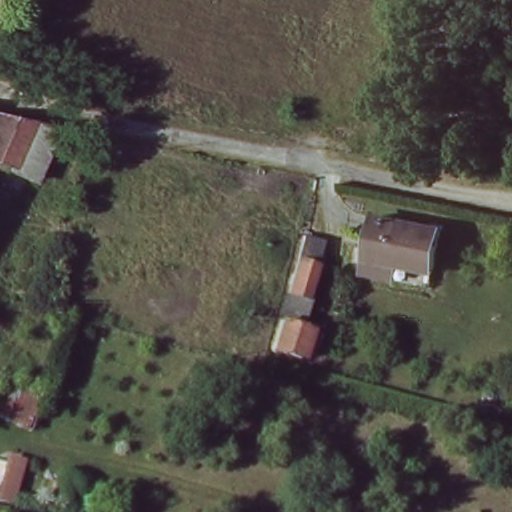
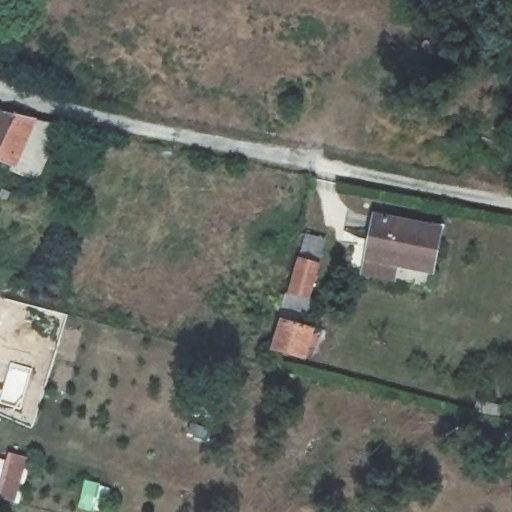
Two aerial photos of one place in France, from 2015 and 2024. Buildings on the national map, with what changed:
unchanged [(35,180),(0,161),(0,111),(60,123),(35,180)]
unchanged [(370,247),(377,214),(442,227),(433,267),(400,260),(368,254),(370,247)]
unchanged [(320,267),(308,303),(300,300),(292,325),(323,335),(319,353),(308,350),(305,361),(272,350),(298,261),(320,267)]

